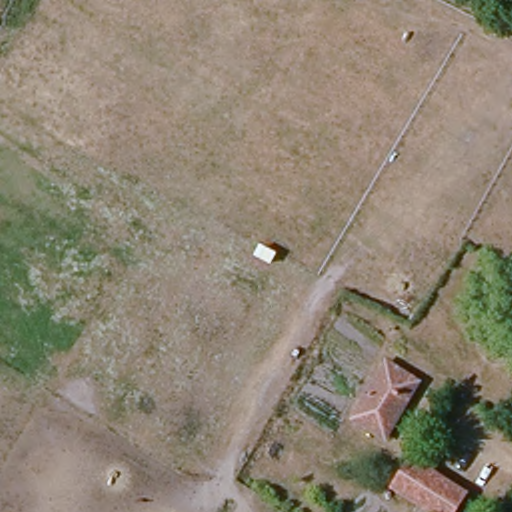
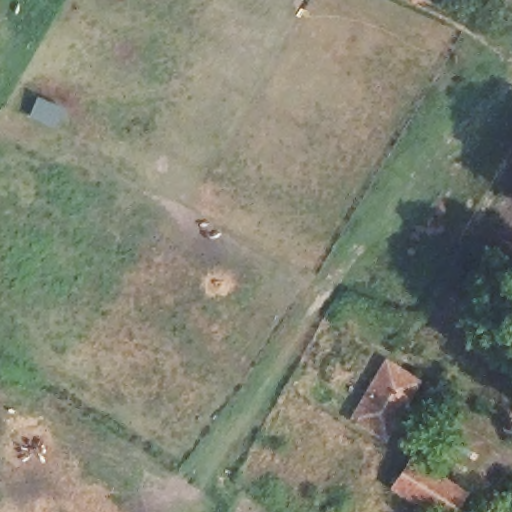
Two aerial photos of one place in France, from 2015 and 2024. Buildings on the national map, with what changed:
unchanged [(386,437),(353,417),(387,361),(418,381),(386,437)]
unchanged [(451,512),(436,512),(396,487),(413,460),(464,492),(451,512)]

